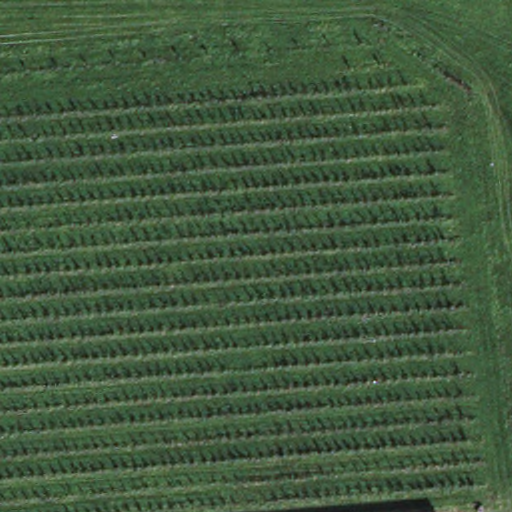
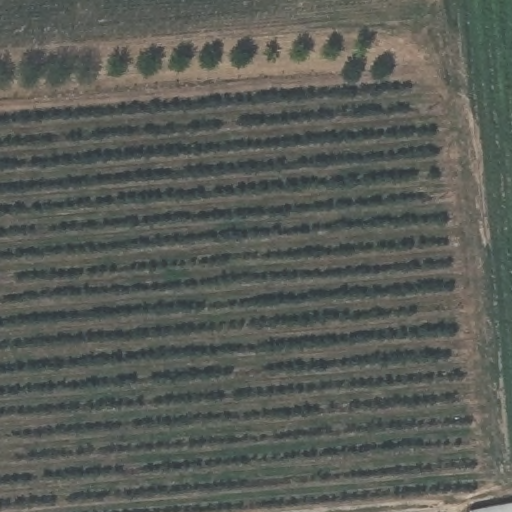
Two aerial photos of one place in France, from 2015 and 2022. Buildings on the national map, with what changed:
new [(512,512),(469,512),(468,511),(512,503),(512,512)]

